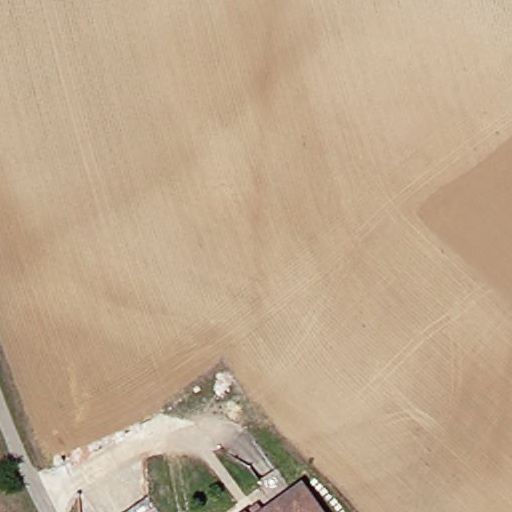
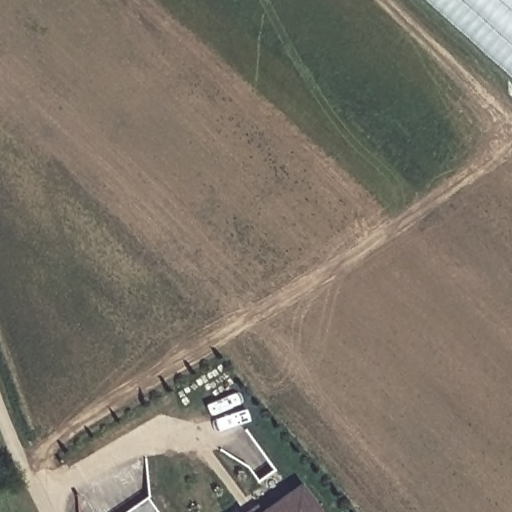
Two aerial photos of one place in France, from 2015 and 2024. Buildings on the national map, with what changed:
new [(425,0),(512,0),(512,78),(425,0)]
unchanged [(315,512),(269,512),(302,491),(315,512)]
unchanged [(153,512),(116,512),(143,497),(153,512)]

